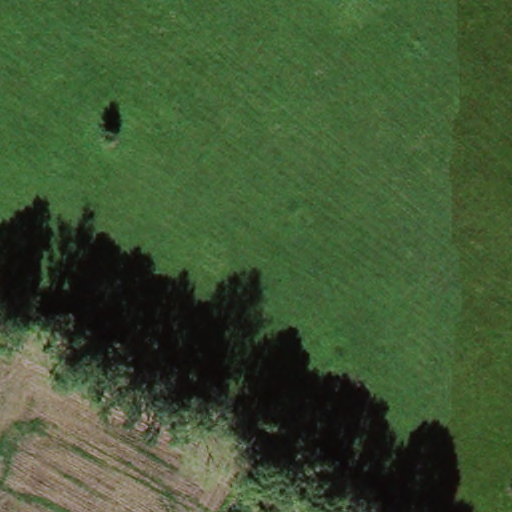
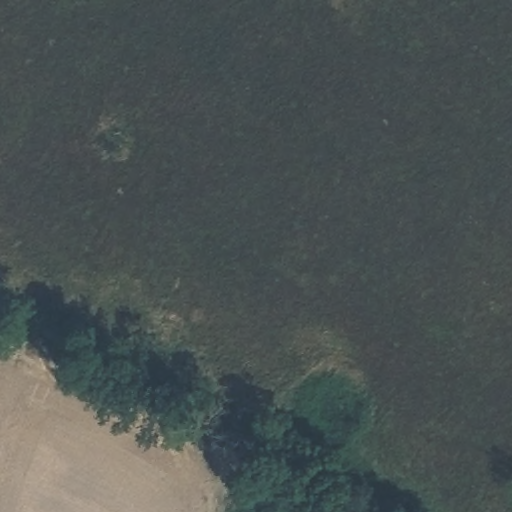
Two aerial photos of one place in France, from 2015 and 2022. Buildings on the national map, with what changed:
[]

